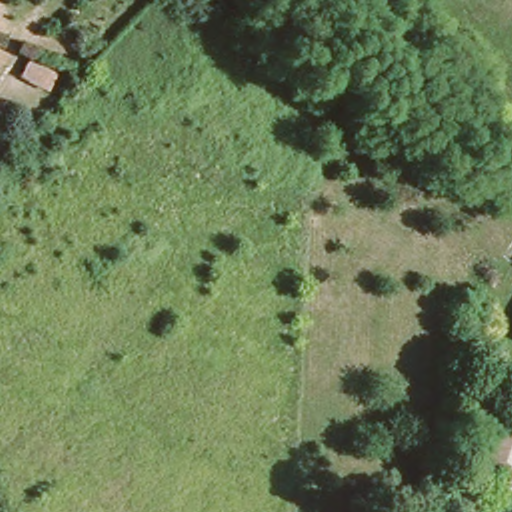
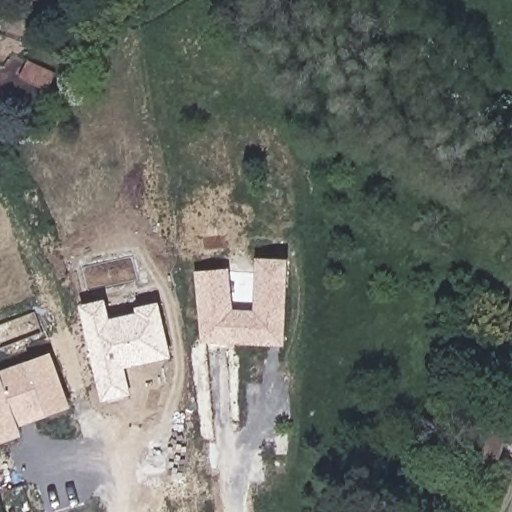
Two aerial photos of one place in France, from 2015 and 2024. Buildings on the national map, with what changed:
new [(202,343),(195,271),(230,269),(234,310),(253,311),(256,257),(288,259),(284,347),(202,343)]
new [(125,369),(130,396),(103,403),(79,306),(105,300),(110,320),(137,312),(136,307),(159,303),(172,358),(125,369)]
unchanged [(512,312),(512,314),(511,313),(512,312)]
new [(51,353),(71,409),(19,427),(22,437),(0,445),(0,370),(51,353)]

